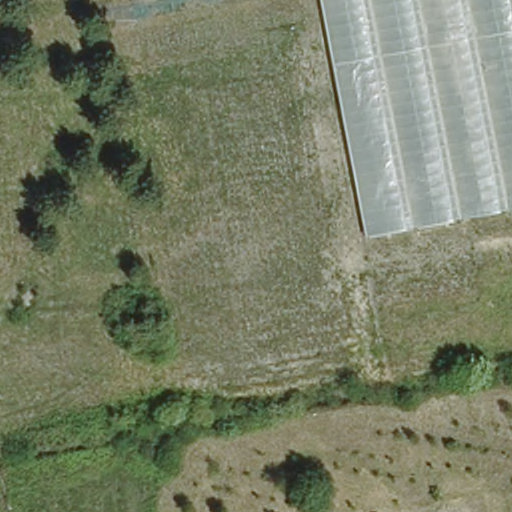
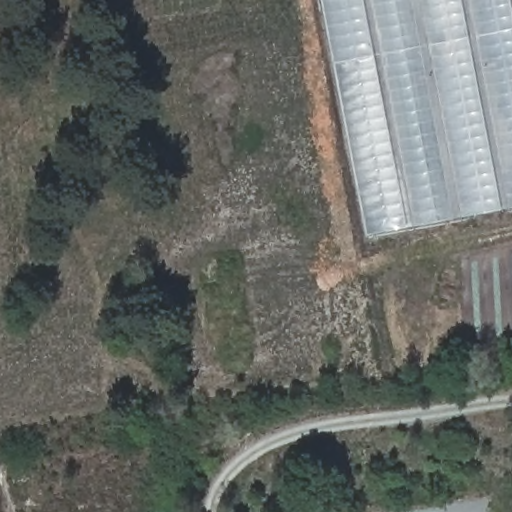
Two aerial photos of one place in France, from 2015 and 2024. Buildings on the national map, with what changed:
unchanged [(318,0),(512,0),(512,211),(362,237),(318,0)]

